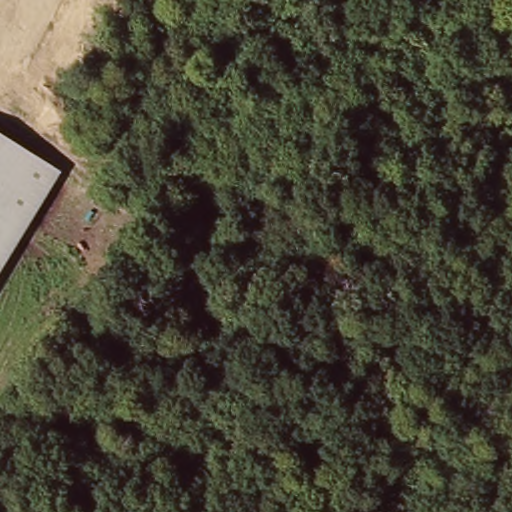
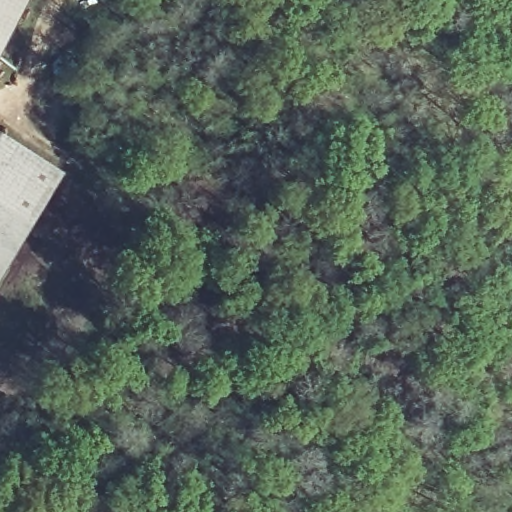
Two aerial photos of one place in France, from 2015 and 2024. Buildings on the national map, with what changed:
new [(0,55),(0,0),(28,0),(0,55)]
unchanged [(49,197),(30,228),(0,209),(0,138),(61,176),(49,197)]
unchanged [(0,209),(30,228),(0,276),(0,209)]

